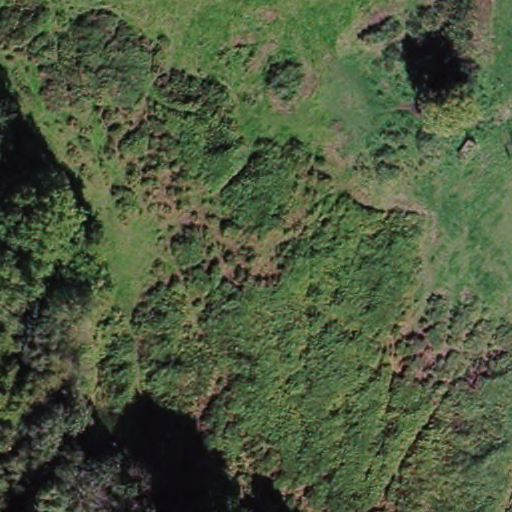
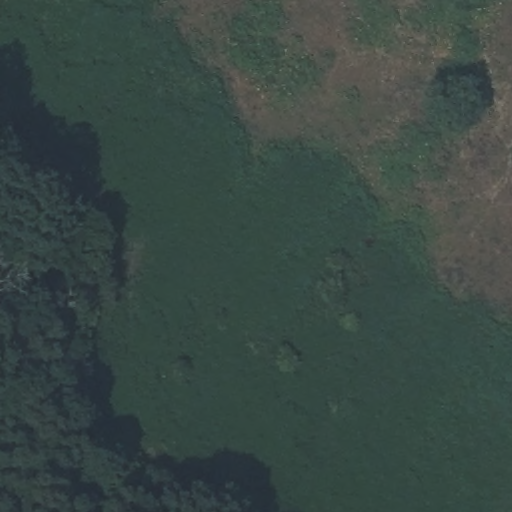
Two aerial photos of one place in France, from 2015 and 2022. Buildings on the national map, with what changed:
[]

